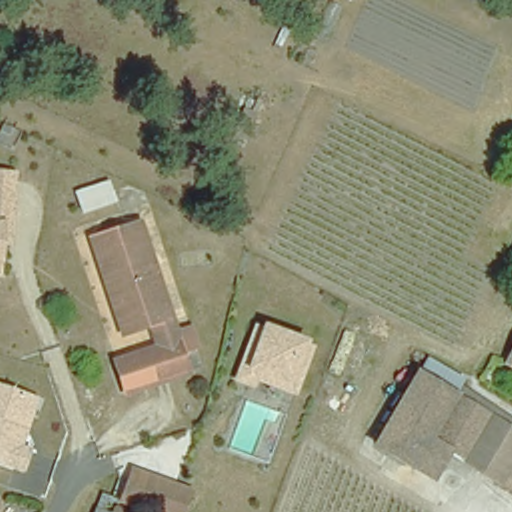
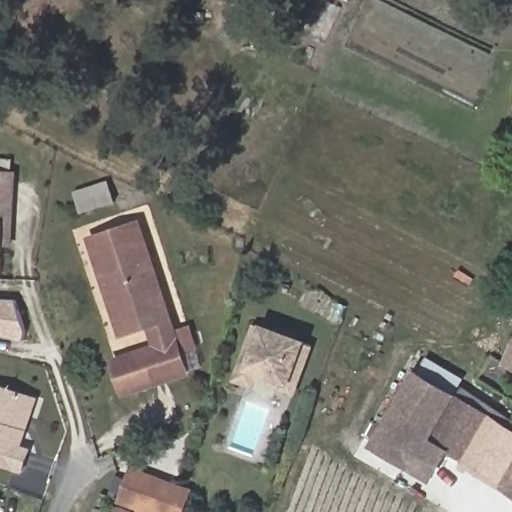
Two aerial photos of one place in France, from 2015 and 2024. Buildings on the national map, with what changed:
unchanged [(342,6),(330,36),(316,30),(330,0),(342,6)]
unchanged [(5,240),(0,240),(0,227),(2,204),(0,203),(0,171),(10,171),(5,240)]
unchanged [(107,174),(115,200),(84,211),(74,182),(103,171),(107,174)]
unchanged [(0,227),(0,203),(2,204),(0,227)]
unchanged [(195,342),(183,346),(190,367),(126,389),(115,356),(158,340),(152,321),(124,330),(93,235),(140,218),(176,327),(189,323),(195,342)]
new [(26,331),(24,340),(0,334),(0,299),(16,300),(26,331)]
unchanged [(240,383),(260,330),(275,335),(273,342),(297,351),(300,345),(315,350),(296,397),(282,391),(285,385),(260,375),(255,389),(240,383)]
unchanged [(505,358),(512,346),(512,362),(505,358)]
unchanged [(415,461),(377,437),(421,367),(430,353),(462,373),(454,388),(512,423),(512,486),(450,447),(434,473),(415,461)]
unchanged [(24,471),(0,463),(0,386),(32,397),(39,400),(27,431),(22,447),(31,450),(24,471)]
unchanged [(121,490),(131,460),(190,482),(180,512),(121,490)]
unchanged [(99,490),(132,503),(129,512),(91,512),(99,490)]

